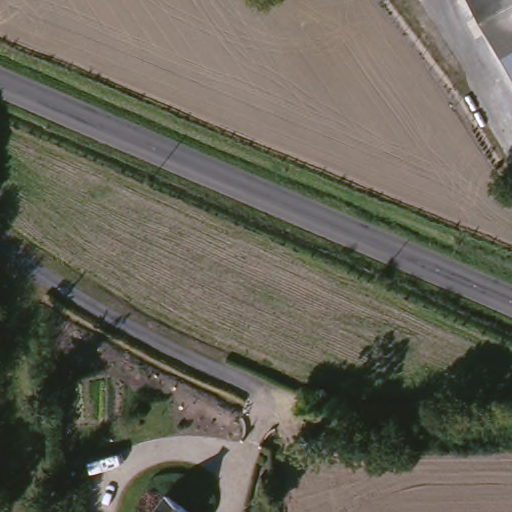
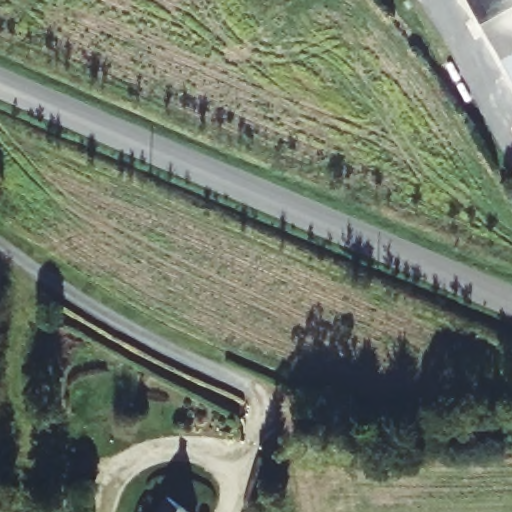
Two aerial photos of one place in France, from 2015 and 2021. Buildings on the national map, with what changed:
unchanged [(475,0),(512,0),(512,72),(475,0)]
unchanged [(148,512),(165,490),(196,508),(193,512),(148,512)]

